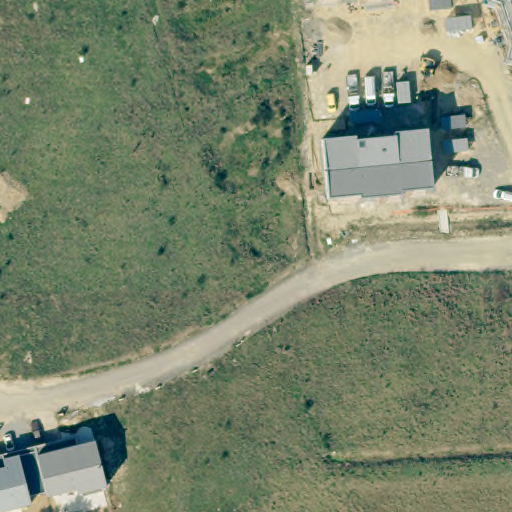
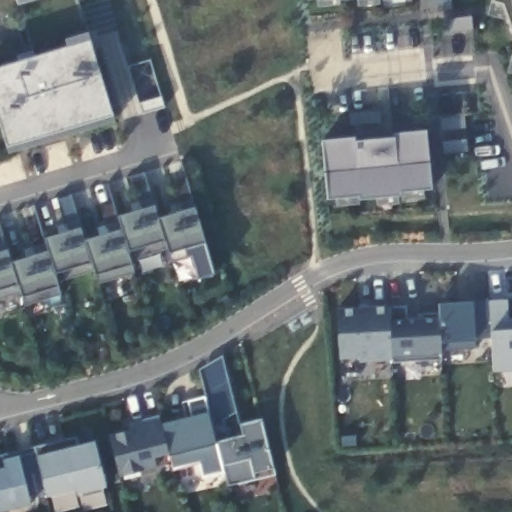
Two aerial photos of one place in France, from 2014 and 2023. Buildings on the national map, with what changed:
new [(17,0),(30,0),(18,4),(17,0)]
unchanged [(504,4),(494,0),(512,0),(512,27),(504,4)]
new [(0,115),(0,67),(69,46),(67,39),(89,33),(115,121),(10,151),(0,115)]
new [(141,112),(138,101),(127,65),(149,58),(160,95),(164,106),(141,112)]
unchanged [(356,137),(357,141),(395,138),(394,133),(427,130),(432,188),(424,189),(423,197),(399,199),(400,203),(377,205),(381,197),(360,199),(358,204),(337,206),(340,197),(327,198),(322,141),(356,137)]
new [(9,250),(13,263),(39,254),(36,247),(48,245),(46,238),(70,231),(67,224),(78,221),(82,228),(84,234),(122,223),(120,216),(144,209),(141,201),(152,198),(156,207),(160,219),(185,211),(180,203),(191,201),(194,209),(204,244),(207,251),(172,261),(171,253),(169,248),(130,260),(131,264),(135,272),(99,283),(96,275),(96,271),(57,282),(58,286),(61,294),(25,305),(24,297),(21,291),(0,298),(0,245),(5,244),(9,250)]
new [(493,370),(491,340),(490,331),(488,301),(508,297),(510,318),(512,318),(512,369),(493,370)]
new [(390,306),(406,306),(406,314),(440,312),(440,303),(473,302),(488,301),(491,340),(474,341),(475,349),(440,352),(441,360),(391,363),(389,360),(359,362),(359,357),(340,358),(336,310),(390,306)]
new [(130,430),(128,423),(160,415),(161,423),(192,415),(186,402),(205,396),(199,370),(221,356),(241,425),(261,420),(272,469),(253,474),(255,479),(227,486),(224,472),(204,477),(201,462),(173,469),(168,454),(154,458),(156,469),(120,478),(109,436),(130,430)]
unchanged [(77,445),(96,440),(108,487),(81,495),(79,496),(78,488),(49,496),(48,492),(31,496),(33,504),(0,512),(0,454),(78,437),(77,445)]

